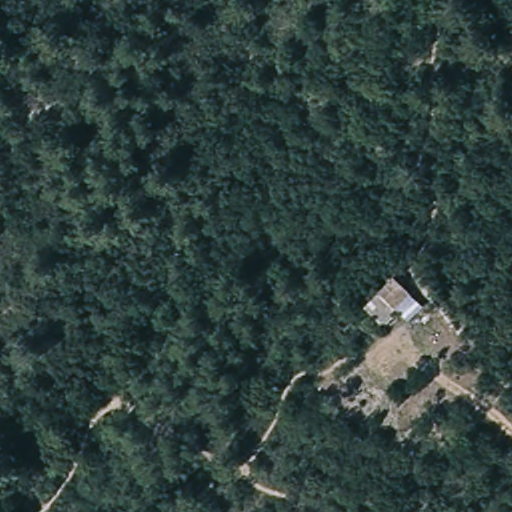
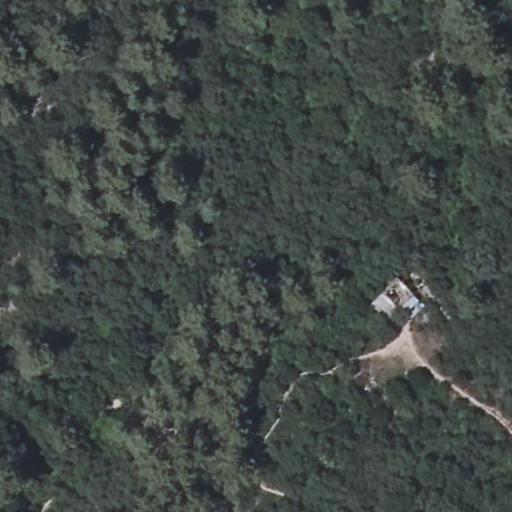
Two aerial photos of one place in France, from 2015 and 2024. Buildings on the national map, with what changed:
unchanged [(367,306),(396,276),(413,291),(383,322),(367,306)]

